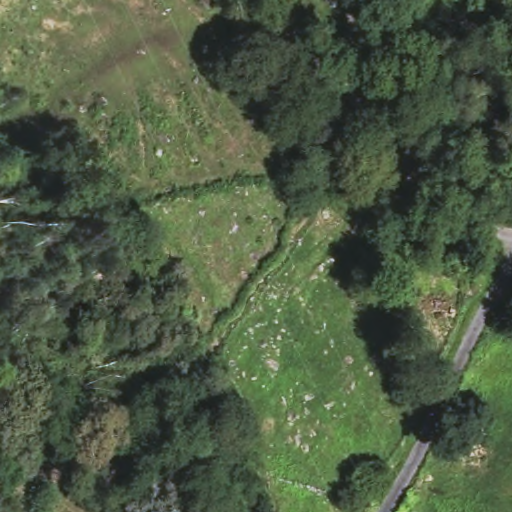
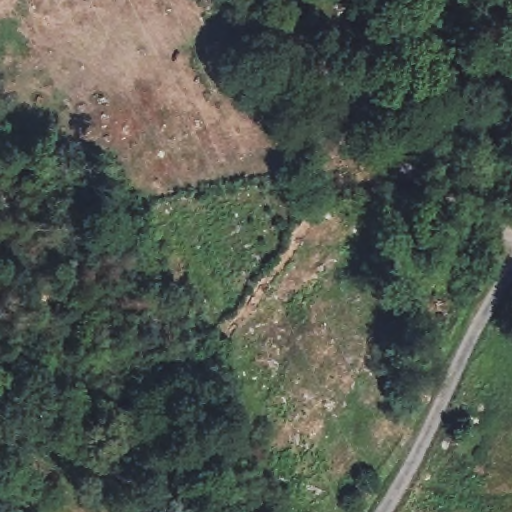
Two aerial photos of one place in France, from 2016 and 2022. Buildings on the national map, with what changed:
[]

